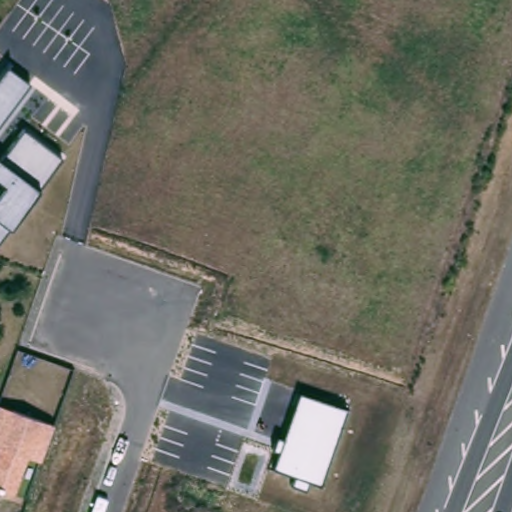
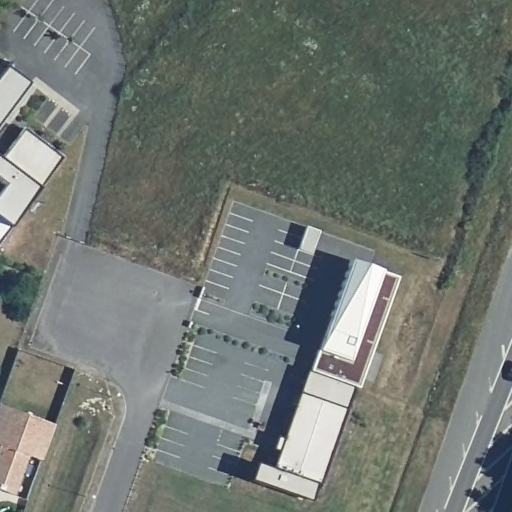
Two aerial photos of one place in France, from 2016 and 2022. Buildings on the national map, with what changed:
unchanged [(29,84),(0,124),(0,79),(9,68),(29,84)]
unchanged [(62,157),(38,189),(10,226),(0,240),(0,160),(25,129),(62,157)]
new [(351,260),(399,277),(359,388),(312,371),(351,260)]
unchanged [(298,394),(344,409),(319,484),(309,480),(307,489),(292,484),(295,474),(274,467),(298,394)]
unchanged [(0,406),(53,424),(41,461),(28,457),(13,495),(0,490),(0,406)]

